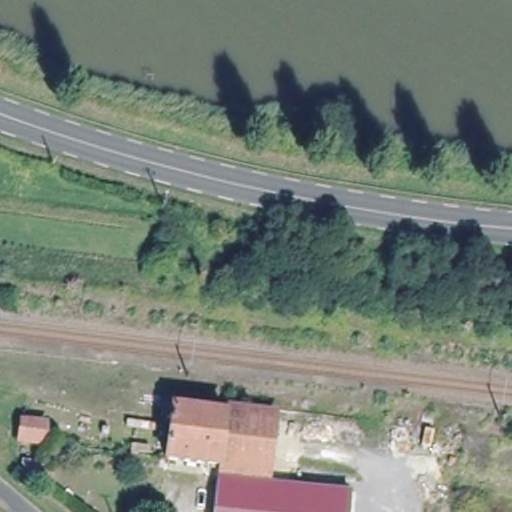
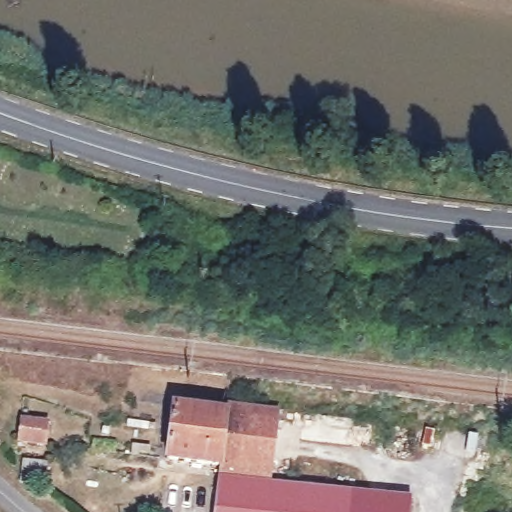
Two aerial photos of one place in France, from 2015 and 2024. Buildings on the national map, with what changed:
unchanged [(226,414),(222,461),(221,464),(165,457),(172,406),(227,412),(226,414)]
unchanged [(276,420),(271,467),(222,461),(226,414),(276,420)]
unchanged [(140,424),(139,431),(125,430),(125,422),(140,424)]
unchanged [(41,446),(18,444),(21,424),(43,427),(41,446)]
unchanged [(24,464),(43,466),(40,488),(28,486),(22,486),(22,482),(24,464)]
unchanged [(354,491),(352,512),(217,512),(220,475),(354,491)]
new [(411,498),(410,512),(352,512),(354,491),(411,498)]

